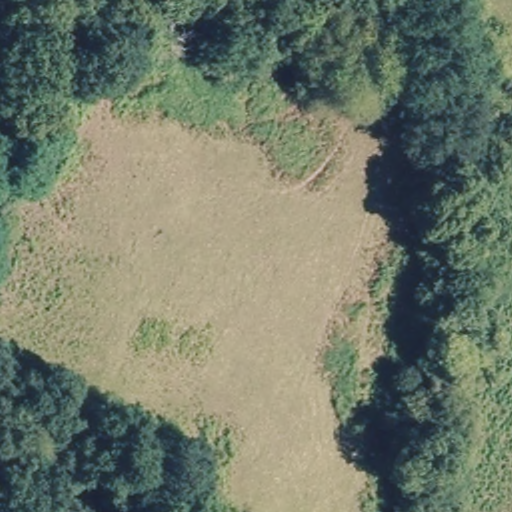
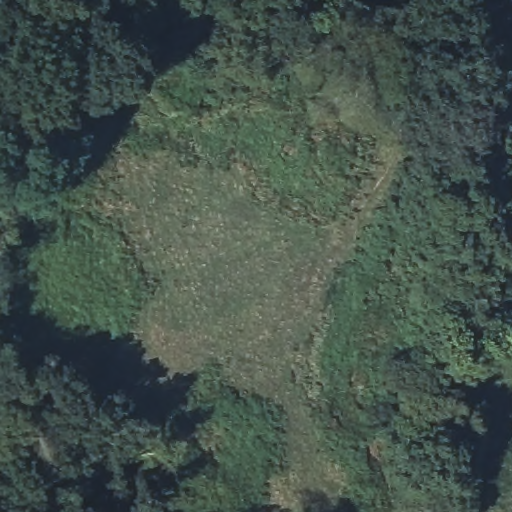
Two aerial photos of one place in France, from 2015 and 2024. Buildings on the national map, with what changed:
[]

